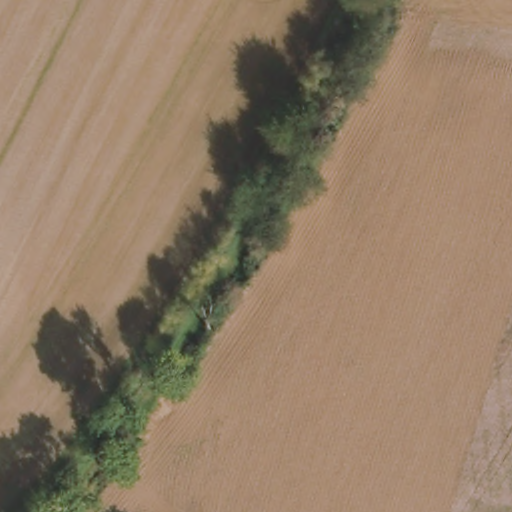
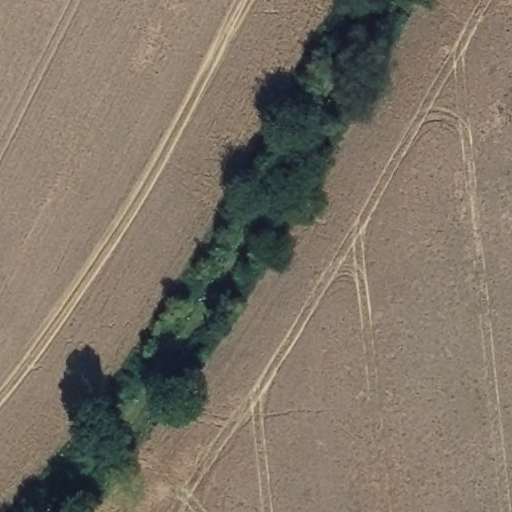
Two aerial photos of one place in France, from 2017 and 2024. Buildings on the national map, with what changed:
[]

